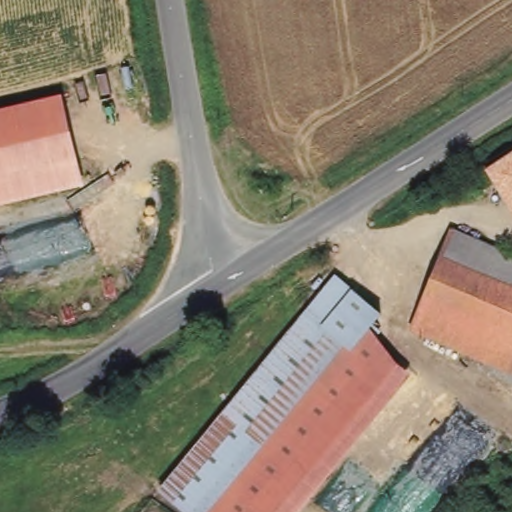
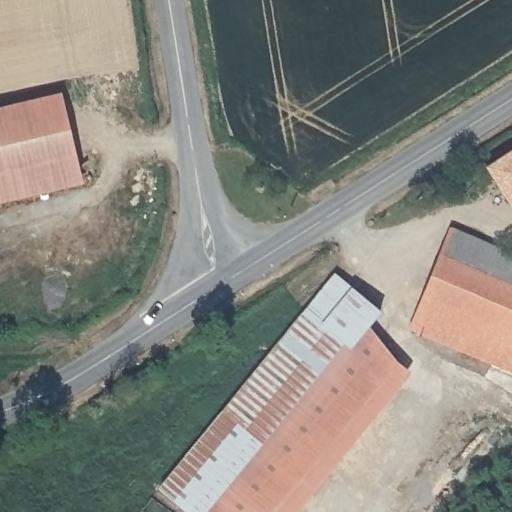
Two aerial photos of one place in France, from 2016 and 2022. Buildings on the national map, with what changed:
unchanged [(0,191),(0,119),(58,106),(75,173),(0,191)]
unchanged [(481,166),(512,145),(512,210),(481,166)]
unchanged [(406,337),(443,230),(512,256),(512,375),(406,337)]
unchanged [(367,323),(377,331),(362,353),(345,341),(301,311),(332,271),(380,305),(367,323)]
unchanged [(213,512),(185,512),(160,493),(301,311),(345,341),(213,512)]
unchanged [(345,341),(362,353),(377,331),(411,372),(298,512),(213,512),(345,341)]

